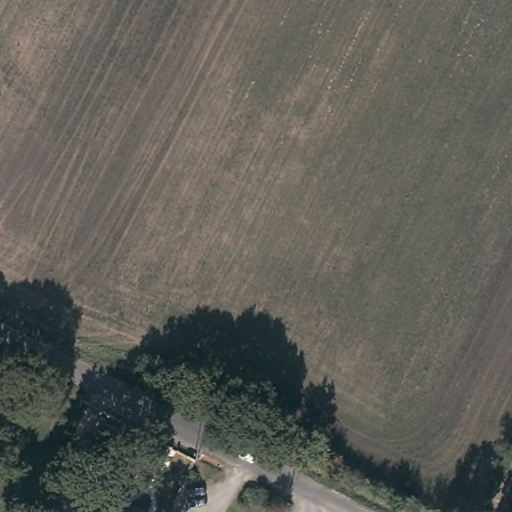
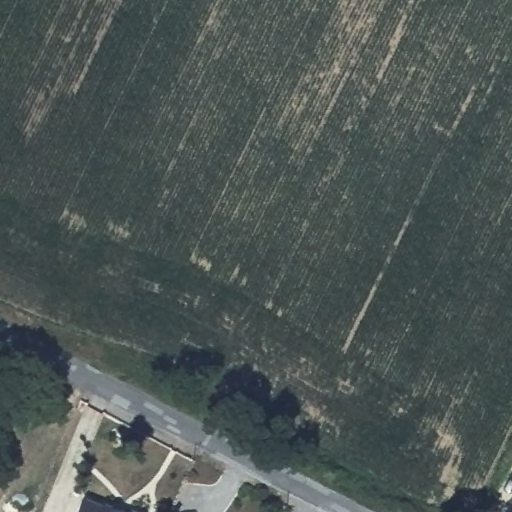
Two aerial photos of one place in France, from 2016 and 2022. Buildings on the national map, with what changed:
unchanged [(97,492),(115,499),(116,497),(140,507),(142,503),(157,509),(156,512),(89,512),(97,492)]

